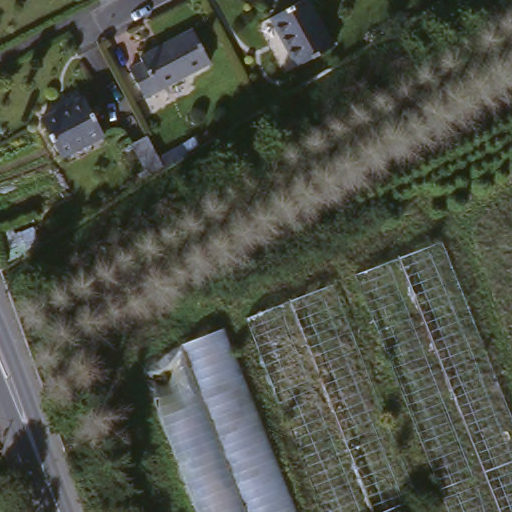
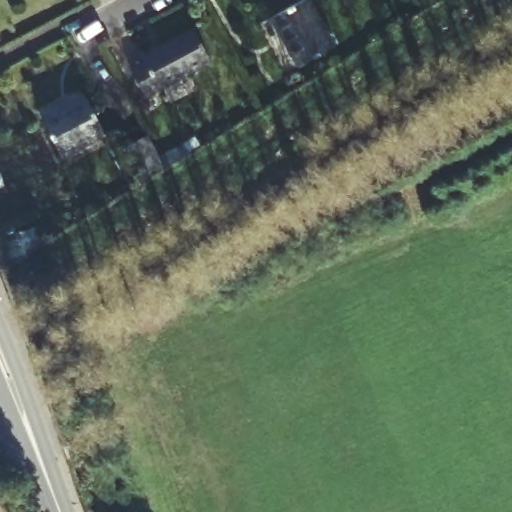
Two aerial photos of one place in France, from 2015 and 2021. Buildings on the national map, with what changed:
unchanged [(296,70),(267,17),(303,0),(309,0),(333,40),(296,70)]
unchanged [(188,34),(206,65),(144,102),(130,77),(139,71),(136,65),(188,34)]
unchanged [(82,92),(109,131),(68,163),(40,123),(82,92)]
unchanged [(171,168),(188,198),(169,210),(158,192),(161,191),(154,179),(171,168)]
demolished [(443,512),(351,272),(446,237),(512,407),(512,512),(443,512)]
demolished [(330,283),(418,512),(314,512),(240,320),(330,283)]
unchanged [(216,329),(289,512),(193,512),(133,361),(216,329)]

